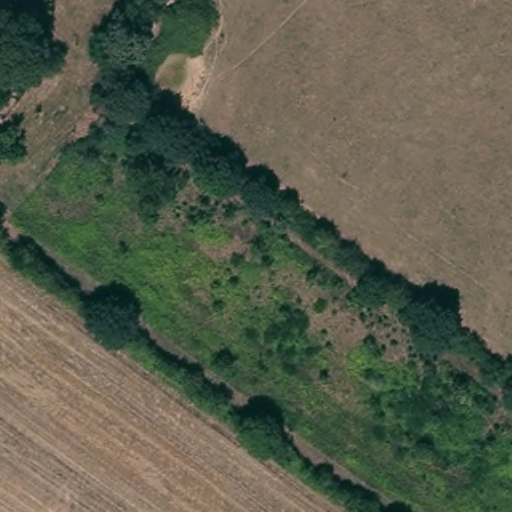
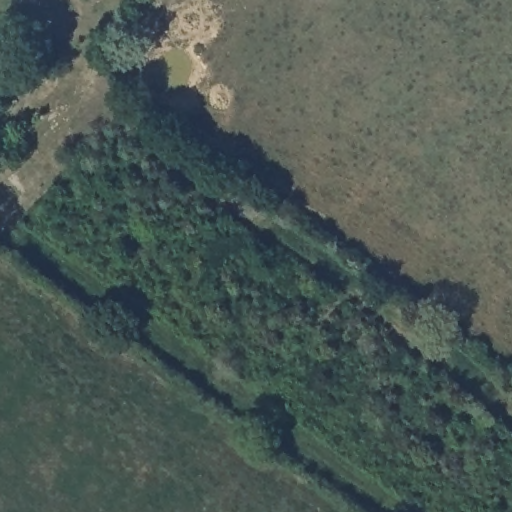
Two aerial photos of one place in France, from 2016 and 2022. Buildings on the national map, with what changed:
unchanged [(0,88),(0,59),(15,75),(0,88)]

